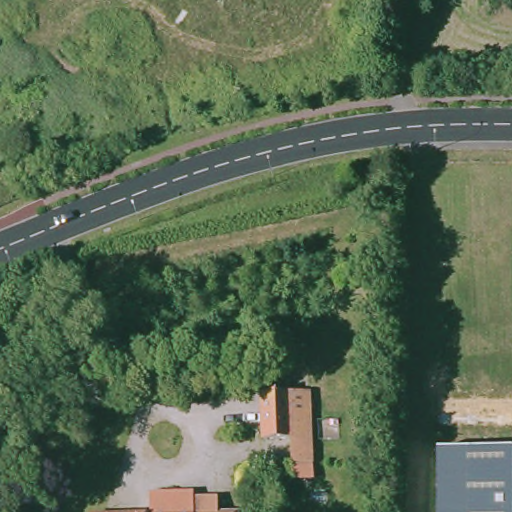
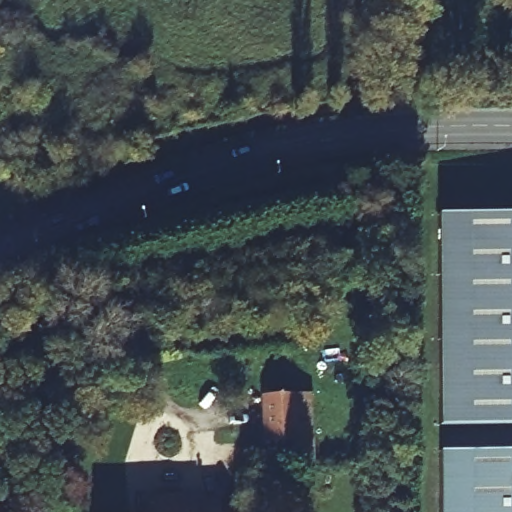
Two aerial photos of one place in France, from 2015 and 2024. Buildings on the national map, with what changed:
new [(443,221),(512,220),(512,427),(447,429),(443,221)]
unchanged [(358,283),(356,289),(345,285),(348,279),(358,283)]
unchanged [(306,388),(310,459),(290,459),(288,435),(260,435),(259,427),(256,389),(273,389),(306,388)]
unchanged [(512,512),(439,512),(439,450),(512,450),(512,512)]
unchanged [(178,505),(178,510),(214,508),(214,512),(147,512),(146,507),(178,505)]

